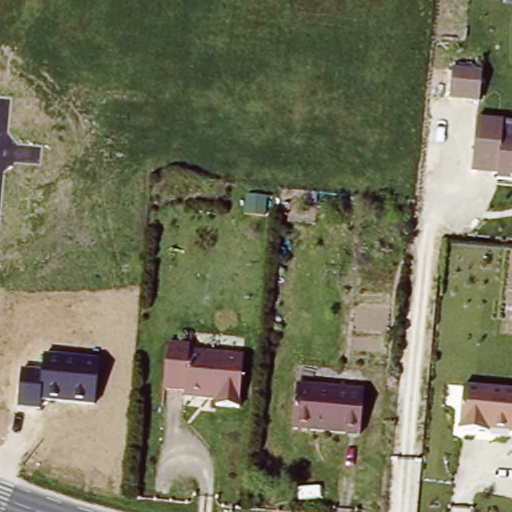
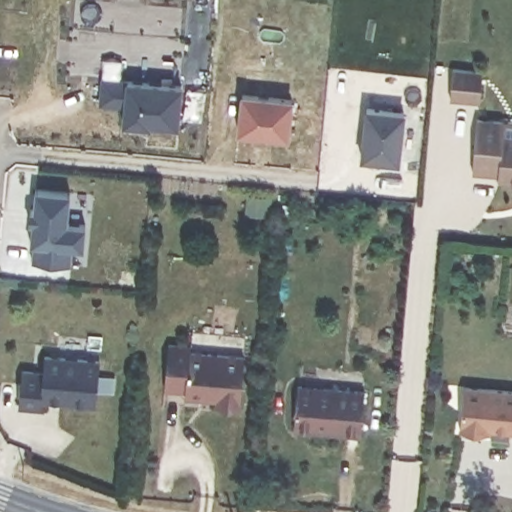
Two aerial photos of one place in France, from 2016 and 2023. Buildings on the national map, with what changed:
unchanged [(449,67),(482,71),(479,100),(447,98),(449,67)]
new [(111,75),(176,83),(172,122),(144,120),(144,122),(118,119),(120,101),(108,100),(111,75)]
new [(289,139),(235,133),(239,90),(294,97),(289,139)]
new [(399,161),(360,158),(365,105),(405,110),(399,161)]
unchanged [(476,118),(512,122),(512,180),(496,179),(496,173),(469,171),(476,118)]
new [(25,221),(31,221),(32,209),(30,209),(32,188),(66,192),(63,222),(82,224),(79,247),(68,246),(66,264),(25,260),(27,242),(23,242),(25,221)]
unchanged [(191,348),(190,355),(243,361),(237,414),(219,413),(218,403),(181,401),(181,393),(164,391),(168,346),(191,348)]
unchanged [(21,370),(44,373),(45,354),(98,360),(94,405),(40,401),(40,410),(18,408),(21,370)]
unchanged [(462,385),(512,389),(512,432),(459,428),(462,385)]
unchanged [(362,397),(357,442),(292,432),(296,389),(362,397)]

